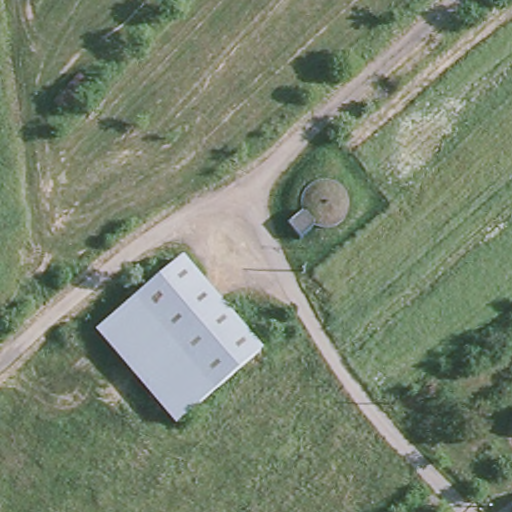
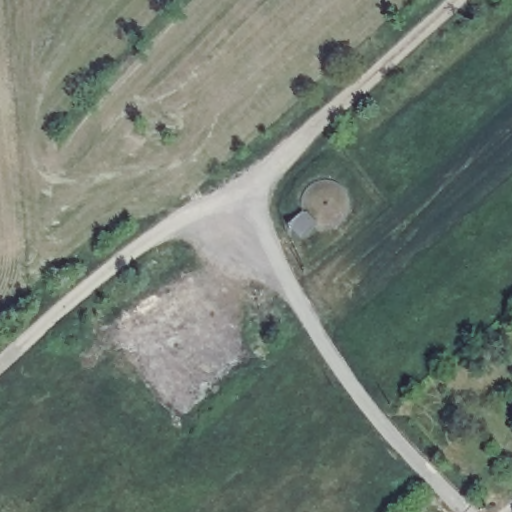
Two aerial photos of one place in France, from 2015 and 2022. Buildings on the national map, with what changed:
demolished [(176,260),(255,352),(209,391),(131,299),(176,260)]
demolished [(131,299),(209,391),(170,424),(92,332),(131,299)]

